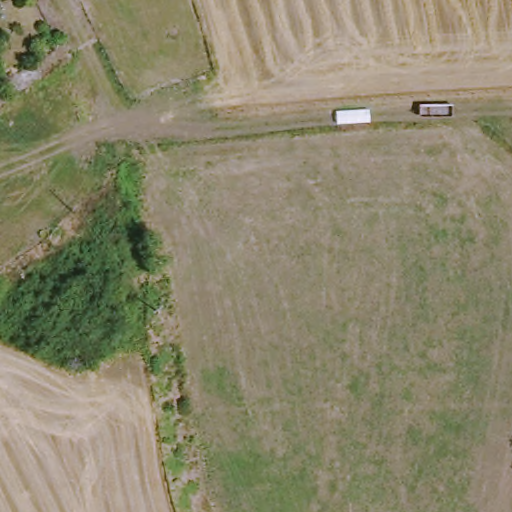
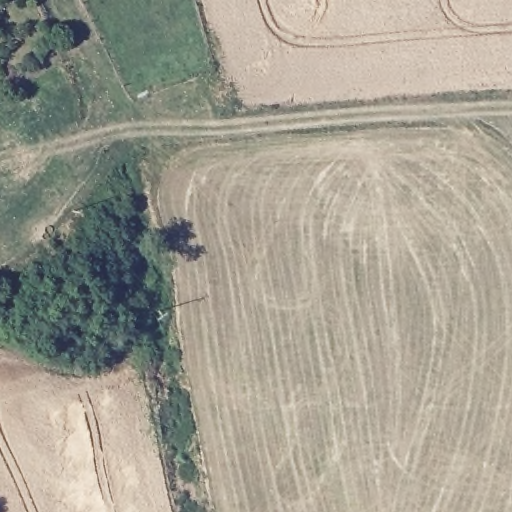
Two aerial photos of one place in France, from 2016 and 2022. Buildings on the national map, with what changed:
[]

